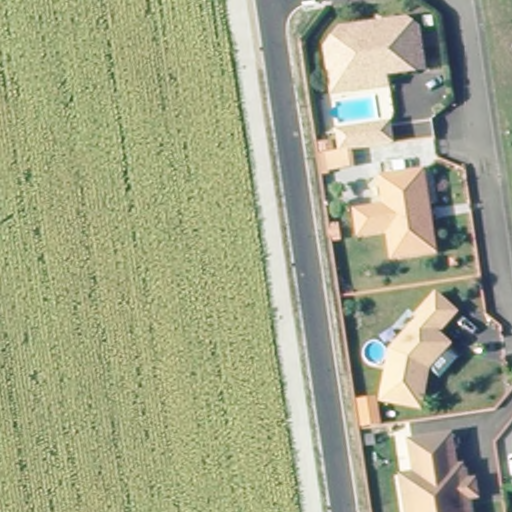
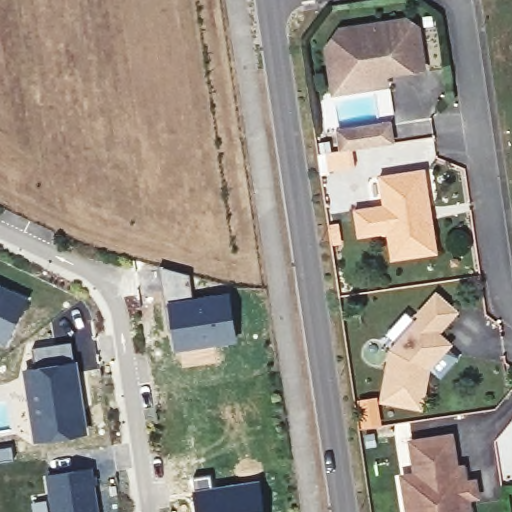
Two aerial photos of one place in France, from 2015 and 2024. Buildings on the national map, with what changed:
unchanged [(331,94),(329,80),(324,48),(336,31),(405,20),(415,27),(422,69),(384,75),(386,86),(331,94)]
unchanged [(318,143),(337,142),(336,133),(344,131),(390,124),(392,142),(353,152),(356,171),(323,175),(318,143)]
unchanged [(414,173),(423,172),(430,217),(430,221),(435,255),(393,262),(391,262),(387,235),(357,239),(353,212),(372,210),(382,209),(378,179),(414,173)]
new [(237,339),(175,351),(166,300),(158,267),(189,273),(192,297),(229,292),(237,339)]
new [(24,300),(4,342),(0,339),(0,288),(24,300)]
unchanged [(415,411),(375,403),(385,352),(414,321),(411,318),(430,296),(451,314),(432,336),(445,347),(442,349),(422,371),(415,411)]
new [(33,347),(72,342),(74,360),(76,360),(87,433),(33,440),(22,370),(37,366),(33,347)]
unchanged [(402,477),(410,476),(415,475),(410,443),(450,437),(455,468),(462,467),(464,483),(474,482),(477,496),(467,497),(469,512),(408,512),(402,477)]
new [(90,470),(96,512),(53,512),(48,476),(90,470)]
new [(210,475),(212,486),(260,480),(264,512),(197,512),(192,477),(210,475)]

